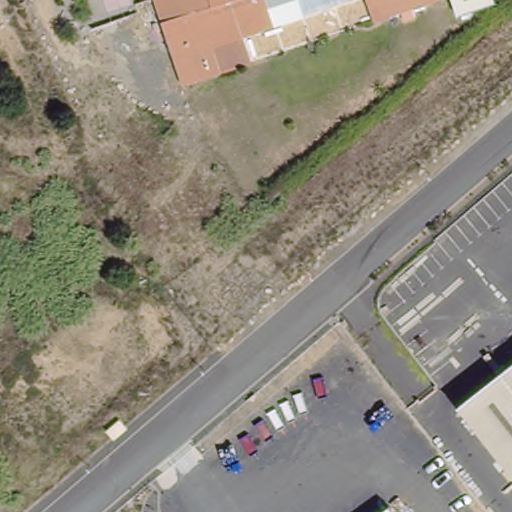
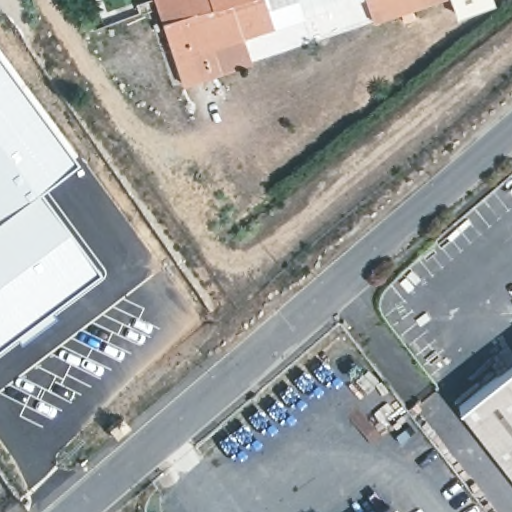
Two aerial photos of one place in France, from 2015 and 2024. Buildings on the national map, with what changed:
unchanged [(192,54),(169,61),(149,0),(269,0),(278,26),(218,44),(227,74),(201,82),(192,54)]
unchanged [(373,27),(364,0),(445,0),(446,4),(373,27)]
unchanged [(451,19),(446,4),(445,0),(488,0),(490,6),(451,19)]
new [(40,190),(0,216),(0,61),(76,160),(40,190)]
new [(71,226),(102,273),(18,342),(0,355),(0,216),(40,190),(71,226)]
unchanged [(459,403),(512,363),(512,474),(459,403)]
unchanged [(397,512),(378,512),(389,502),(397,512)]

